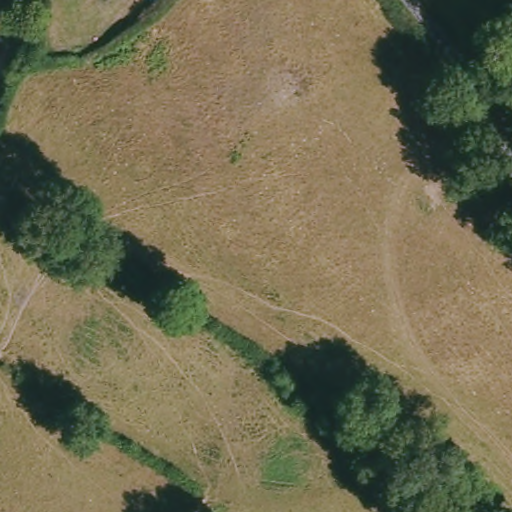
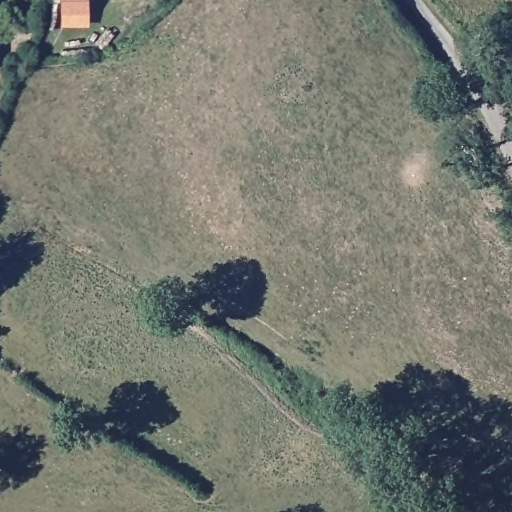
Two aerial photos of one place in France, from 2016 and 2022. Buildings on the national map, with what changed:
new [(67,15),(66,0),(88,0),(89,14),(90,27),(68,28),(67,15)]

